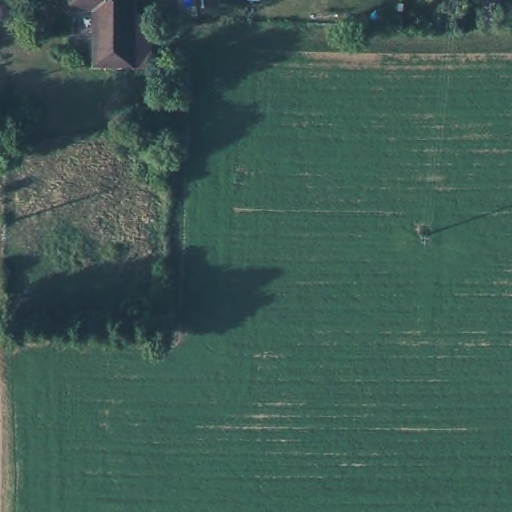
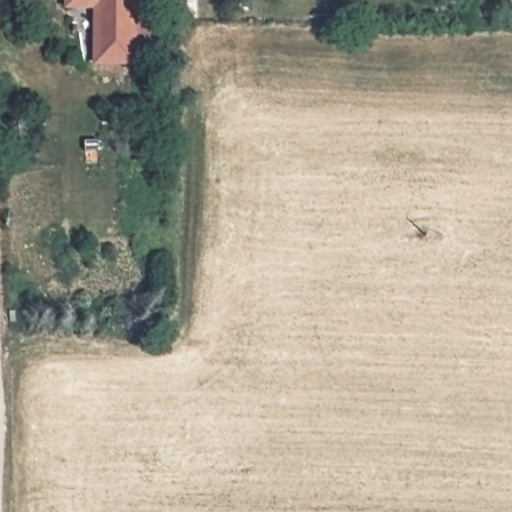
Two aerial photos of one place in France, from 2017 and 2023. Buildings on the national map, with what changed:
unchanged [(130,11),(145,12),(145,60),(130,59),(129,63),(88,66),(88,10),(66,9),(66,0),(129,0),(130,11)]

